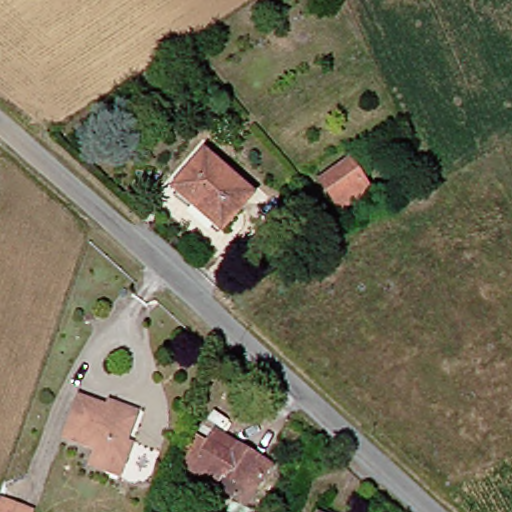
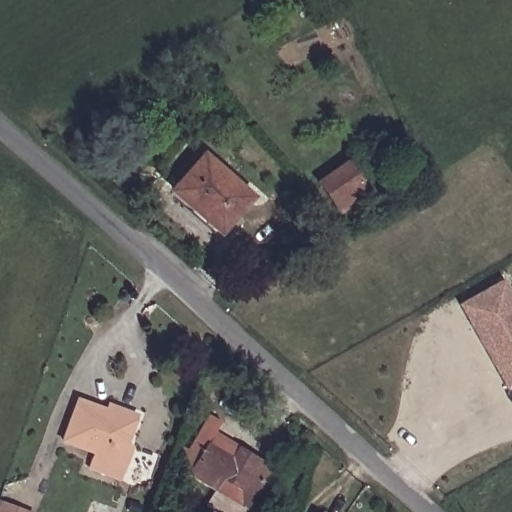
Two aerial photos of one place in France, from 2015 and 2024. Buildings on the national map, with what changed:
unchanged [(173,190),(204,155),(253,197),(221,231),(173,190)]
unchanged [(345,211),(325,182),(354,162),(374,191),(345,211)]
new [(494,365),(469,321),(459,303),(472,296),(502,280),(512,298),(512,386),(507,389),(494,365)]
unchanged [(128,469),(124,479),(95,468),(100,453),(68,441),(83,400),(112,410),(113,405),(141,415),(139,420),(131,445),(136,447),(128,469)]
unchanged [(199,439),(211,446),(219,435),(274,468),(251,506),(196,473),(198,471),(185,463),(199,439)]
unchanged [(39,512),(5,512),(8,501),(39,512)]

